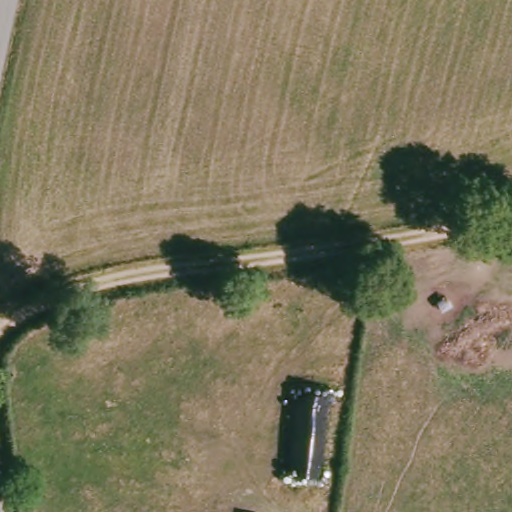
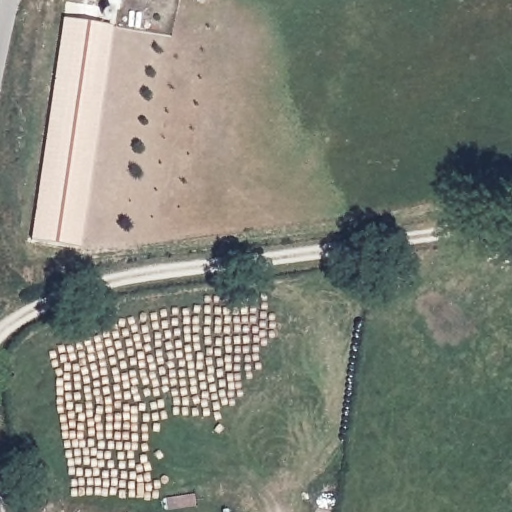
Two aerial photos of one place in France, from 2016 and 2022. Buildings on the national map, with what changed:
new [(62,20),(104,25),(103,20),(102,18),(102,16),(102,13),(104,10),(106,9),(110,10),(112,12),(114,15),(113,16),(112,19),(112,27),(78,250),(29,242),(62,20)]

